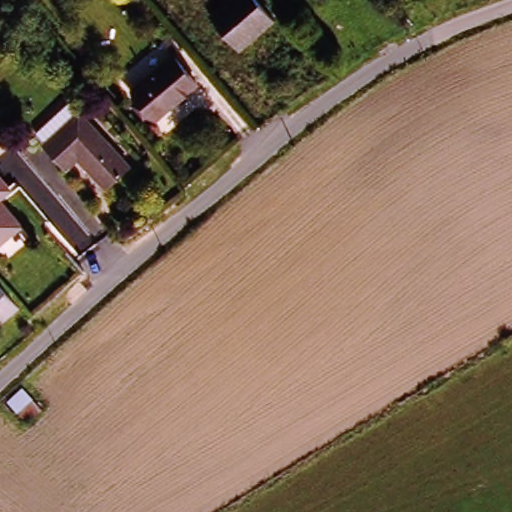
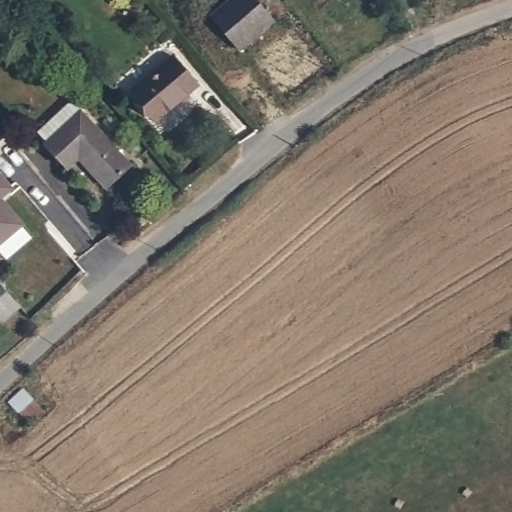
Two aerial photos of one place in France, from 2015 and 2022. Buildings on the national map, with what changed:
unchanged [(272,18),(237,48),(209,15),(226,0),(257,0),(272,18)]
unchanged [(197,82),(155,118),(131,89),(172,54),(197,82)]
unchanged [(105,186),(77,156),(65,167),(43,143),(45,141),(35,130),(72,96),(82,106),(79,109),(130,164),(105,186)]
unchanged [(0,199),(0,181),(9,191),(0,199)]
unchanged [(0,244),(0,203),(20,227),(0,244)]
unchanged [(4,320),(0,315),(0,277),(23,303),(4,320)]

